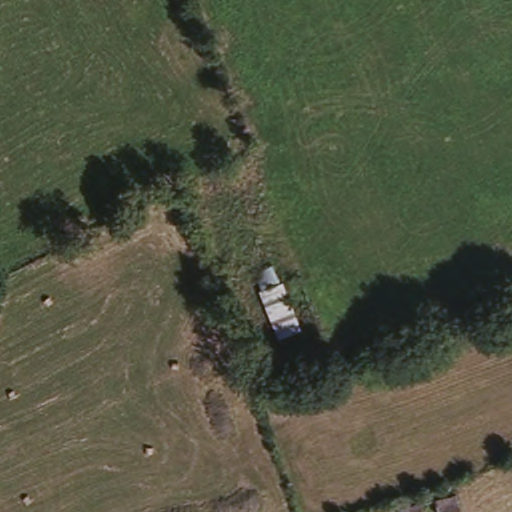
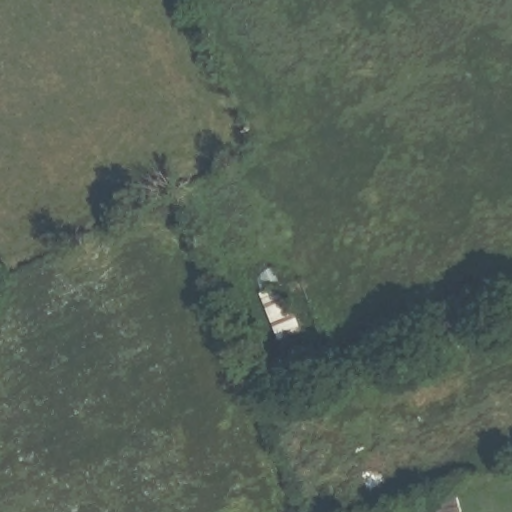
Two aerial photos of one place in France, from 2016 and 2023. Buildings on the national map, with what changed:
unchanged [(279,270),(305,339),(279,351),(251,280),(279,270)]

